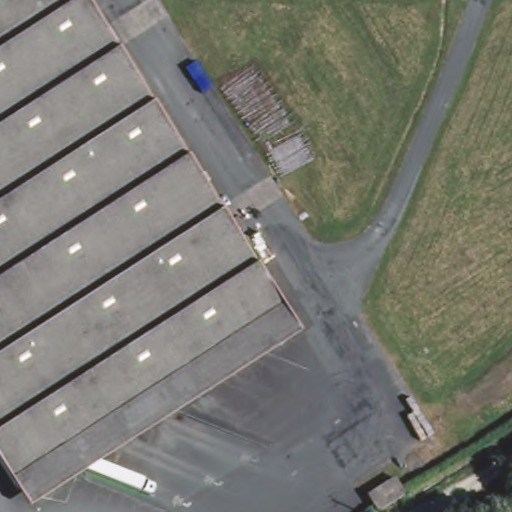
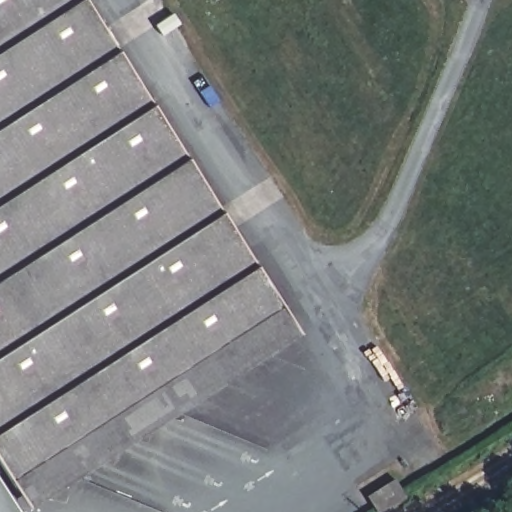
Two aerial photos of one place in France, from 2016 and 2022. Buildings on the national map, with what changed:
unchanged [(299,343),(30,512),(21,512),(0,478),(0,0),(87,0),(299,343)]

